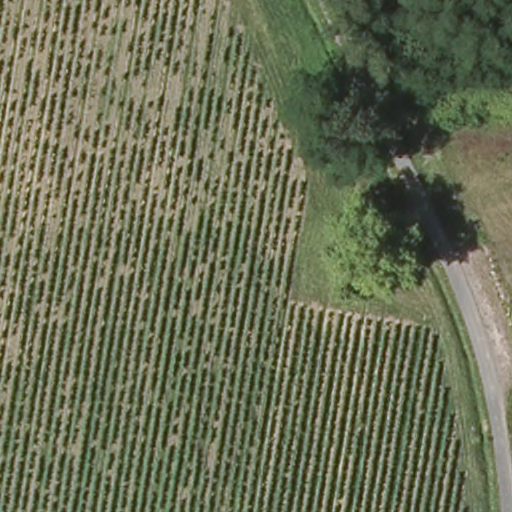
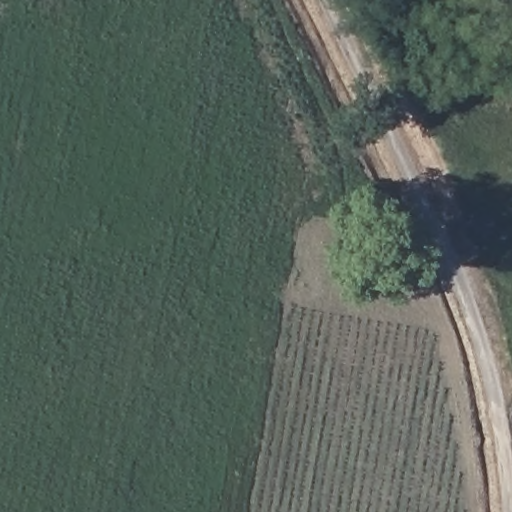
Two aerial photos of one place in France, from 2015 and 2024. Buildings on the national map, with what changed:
unchanged [(353,205),(366,204),(379,203),(378,198),(392,197),(395,218),(367,222),(355,224),(353,205)]

